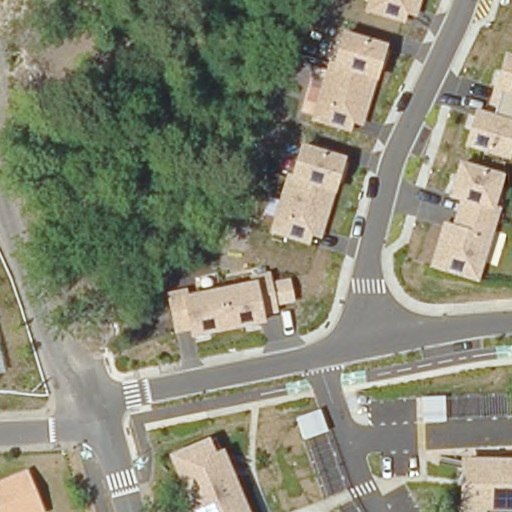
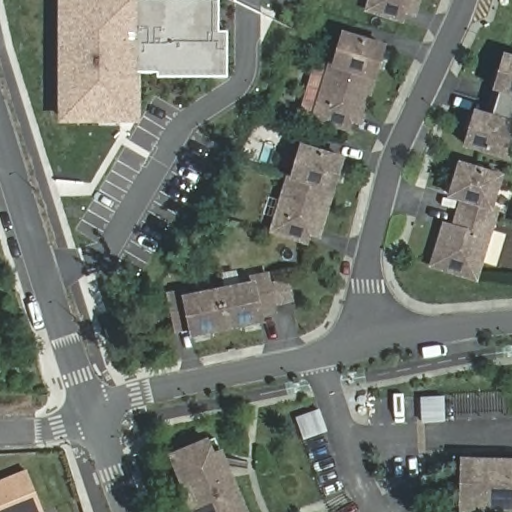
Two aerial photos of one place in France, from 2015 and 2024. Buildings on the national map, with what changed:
new [(230,33),(230,78),(160,78),(160,74),(139,74),(139,119),(124,119),(124,123),(66,120),(65,43),(62,43),(62,0),(221,0),(221,33),(230,33)]
unchanged [(409,16),(406,25),(365,12),(368,0),(423,0),(417,18),(409,16)]
unchanged [(364,127),(355,123),(351,133),(311,121),(330,61),(335,62),(344,31),(388,44),(378,82),(364,127)]
unchanged [(510,162),(463,149),(475,110),(488,113),(495,89),(505,53),(512,55),(512,156),(510,162)]
unchanged [(322,239),(312,237),(310,247),(269,234),(288,174),(293,176),(302,143),(347,157),(336,194),(322,239)]
unchanged [(502,208),(480,283),(430,270),(443,222),(452,224),(459,202),(448,198),(458,161),(500,173),(505,175),(495,207),(502,208)]
unchanged [(266,325),(195,339),(194,331),(175,334),(167,290),(189,286),(190,293),(250,282),(249,274),(271,270),(273,282),(290,279),(295,302),(278,306),(280,312),(265,316),(266,325)]
new [(0,365),(2,375),(0,375),(0,365)]
unchanged [(423,397),(445,395),(447,421),(424,422),(423,397)]
unchanged [(303,439),(297,419),(321,411),(328,430),(303,439)]
unchanged [(169,456),(210,438),(216,453),(225,450),(250,512),(192,512),(169,456)]
unchanged [(487,511),(487,512),(459,512),(460,457),(512,459),(512,511),(487,511)]
unchanged [(0,480),(27,469),(44,512),(0,512),(0,480)]

